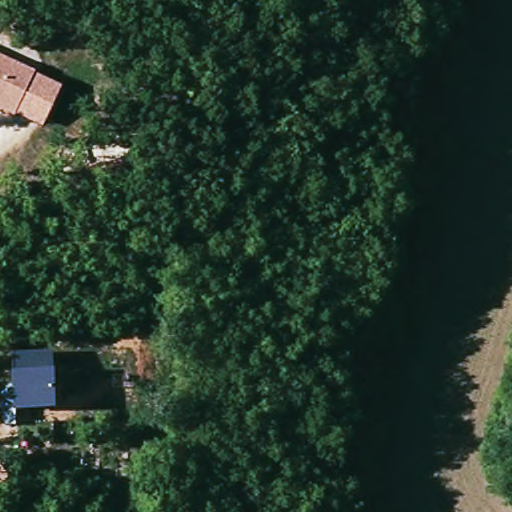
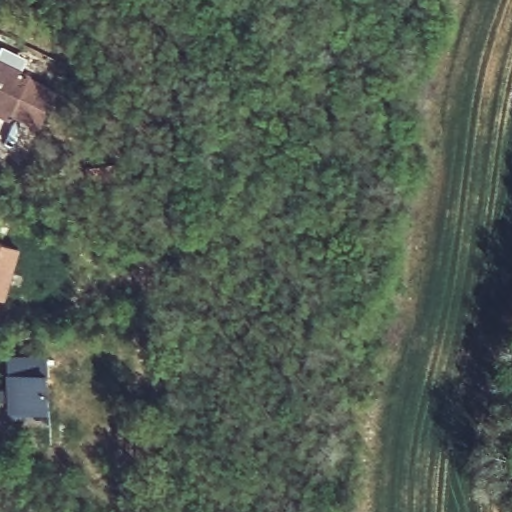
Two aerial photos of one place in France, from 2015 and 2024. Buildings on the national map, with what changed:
unchanged [(31,72),(10,117),(0,112),(0,57),(31,72)]
unchanged [(31,72),(60,86),(40,129),(10,117),(31,72)]
new [(22,246),(6,299),(0,297),(0,239),(22,246)]
unchanged [(13,428),(0,420),(0,391),(10,381),(10,370),(10,353),(50,353),(50,371),(51,410),(14,410),(13,428)]

